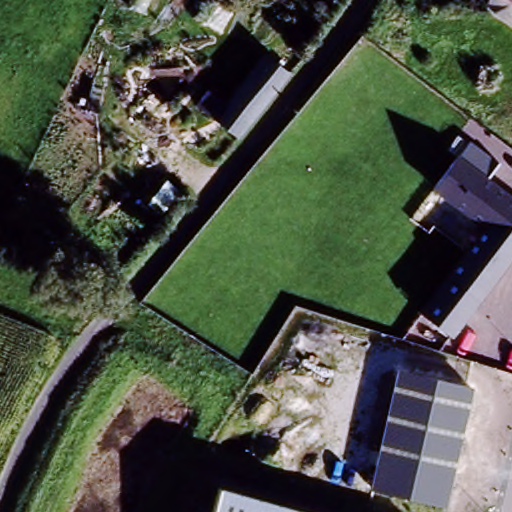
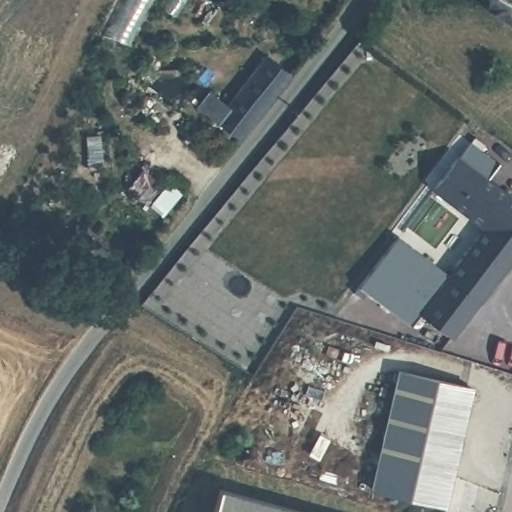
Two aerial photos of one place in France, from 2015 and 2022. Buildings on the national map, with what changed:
unchanged [(484,0),(512,0),(512,27),(481,4),(484,0)]
unchanged [(212,116),(260,48),(285,66),(262,98),(236,133),(212,116)]
unchanged [(499,163),(486,180),(456,157),(470,142),(499,163)]
unchanged [(456,157),(512,200),(512,260),(481,302),(446,277),(482,229),(431,190),(456,157)]
new [(419,311),(409,325),(360,286),(399,237),(446,277),(419,311)]
unchanged [(481,302),(452,337),(419,311),(446,277),(481,302)]
unchanged [(473,388),(446,508),(369,490),(396,371),(473,388)]
unchanged [(310,512),(211,512),(219,486),(310,512)]

